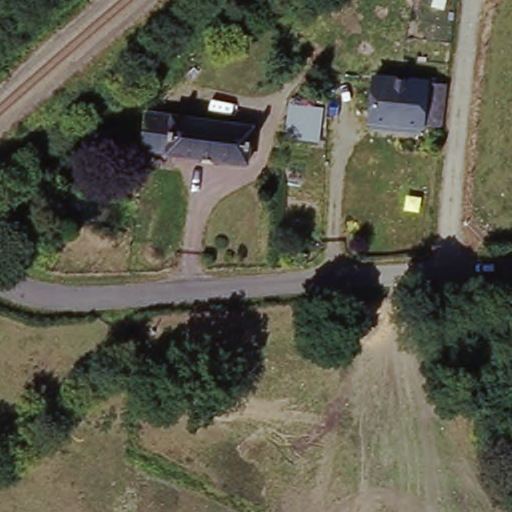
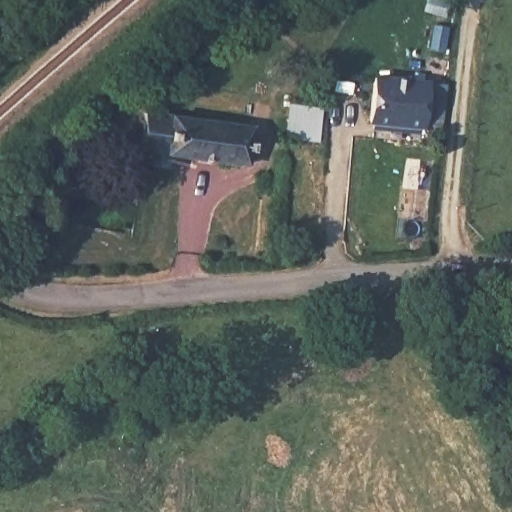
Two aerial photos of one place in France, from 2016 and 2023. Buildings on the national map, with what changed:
unchanged [(376,82),(431,80),(446,80),(447,124),(431,125),(379,126),(376,82)]
unchanged [(337,86),(336,116),(302,116),(302,83),(337,86)]
unchanged [(251,119),(251,159),(139,154),(140,117),(251,119)]

